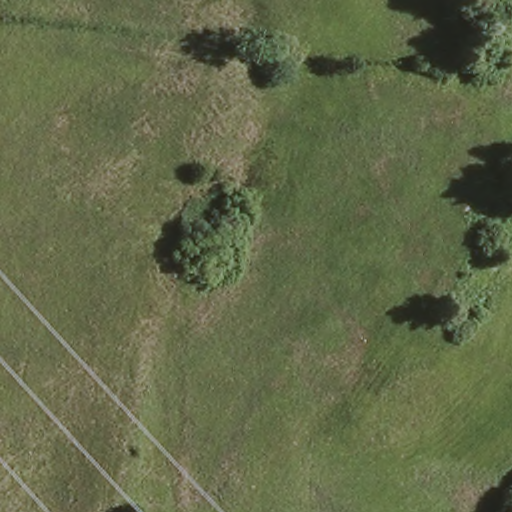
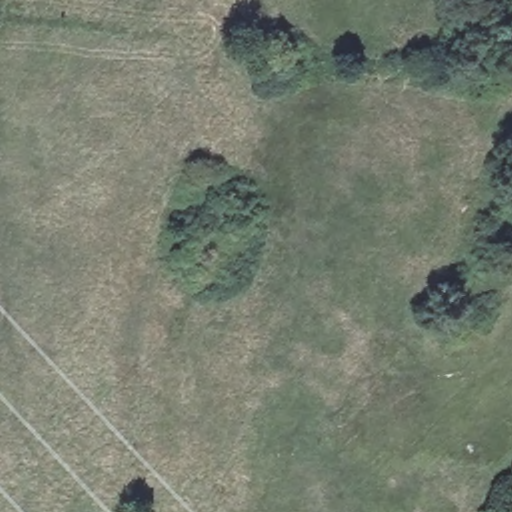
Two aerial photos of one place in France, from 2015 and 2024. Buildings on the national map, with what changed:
[]

